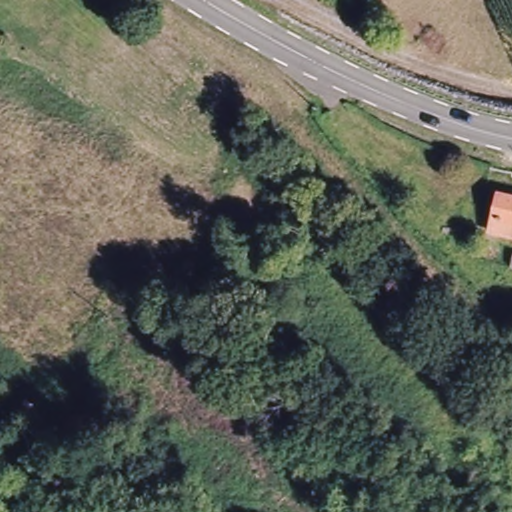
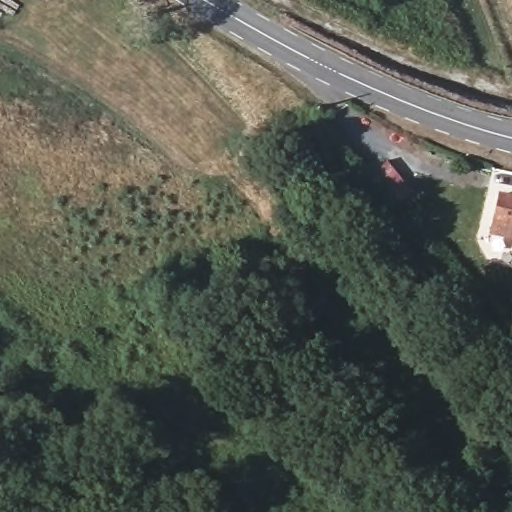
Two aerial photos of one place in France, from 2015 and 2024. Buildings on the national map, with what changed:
unchanged [(512,198),(512,238),(487,234),(495,194),(512,198)]

